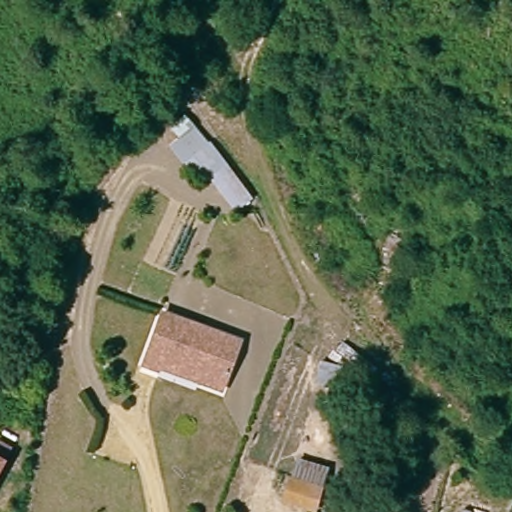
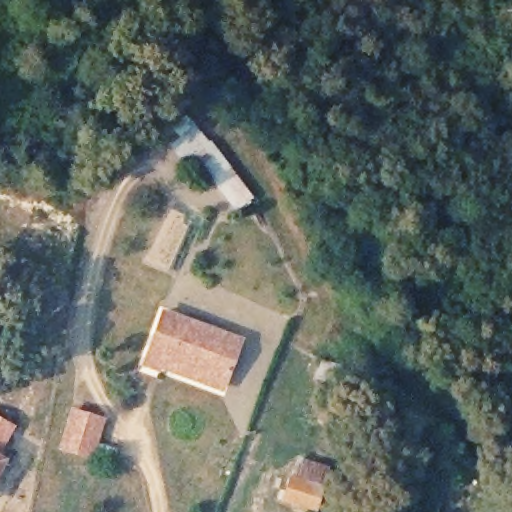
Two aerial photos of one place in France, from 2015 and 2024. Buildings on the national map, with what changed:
unchanged [(249,199),(239,207),(210,169),(201,175),(177,144),(200,126),(213,145),(249,199)]
unchanged [(239,341),(222,390),(147,362),(164,315),(239,341)]
new [(59,450),(70,408),(107,418),(94,457),(59,450)]
unchanged [(308,508),(302,506),(280,500),(292,458),(312,464),(320,466),(308,508)]
unchanged [(1,460),(0,461),(0,459),(1,460)]

